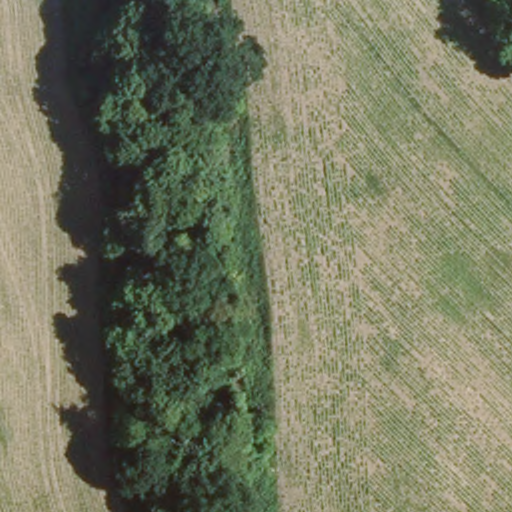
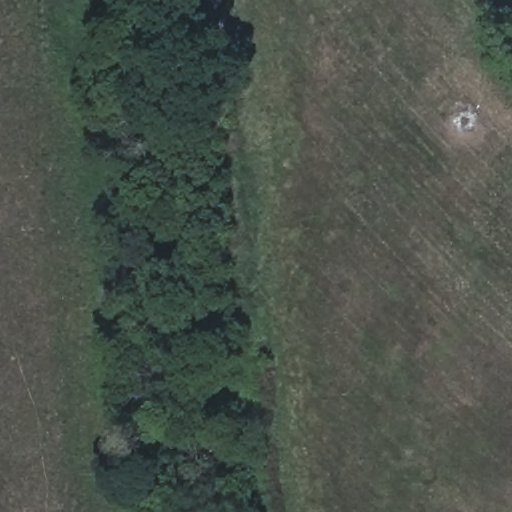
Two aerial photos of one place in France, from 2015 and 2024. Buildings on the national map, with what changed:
[]

